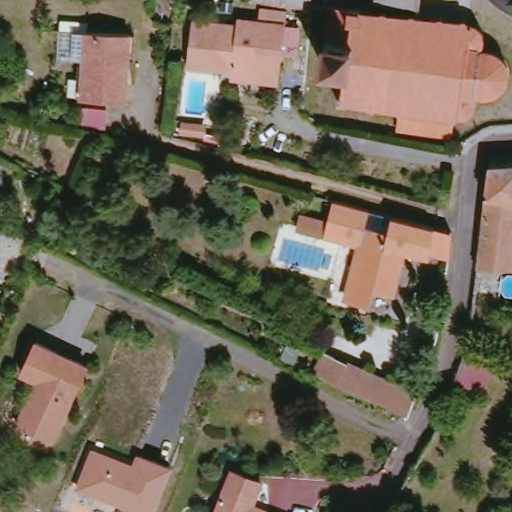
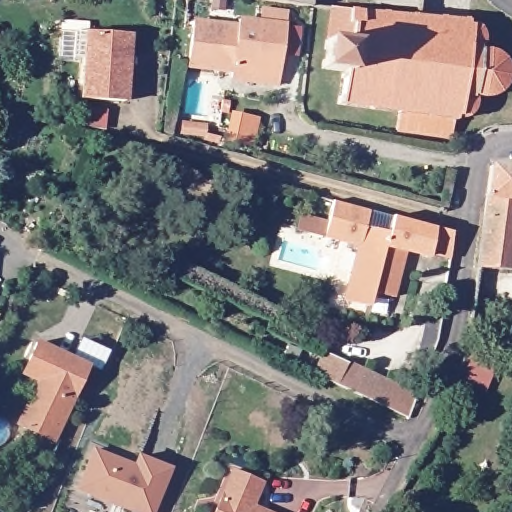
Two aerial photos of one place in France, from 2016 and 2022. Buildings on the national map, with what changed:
unchanged [(312,5),(295,3),(269,0),(312,0),(312,5)]
unchanged [(422,5),(375,4),(374,0),(421,0),(422,5)]
unchanged [(232,26),(233,16),(253,18),(257,5),(267,7),(267,21),(279,22),(277,46),(283,47),(281,69),(275,70),(272,87),(225,82),(226,73),(183,68),(190,18),(232,26)]
unchanged [(471,23),(471,28),(478,28),(483,31),(485,34),(485,55),(501,58),(504,60),(507,68),(510,79),(510,88),(507,94),(499,103),(492,107),(482,106),(478,114),(474,119),(468,123),(460,121),(457,138),(393,129),(395,112),(375,109),(375,113),(369,112),(370,107),(355,104),(353,110),(341,108),(342,97),(348,97),(350,72),(346,71),(347,66),(330,64),(337,11),(353,13),(354,8),(421,17),(471,23)]
unchanged [(82,98),(82,32),(122,31),(123,97),(82,98)]
unchanged [(472,267),(485,159),(492,159),(492,162),(512,161),(512,238),(508,269),(472,267)]
unchanged [(350,205),(346,221),(358,224),(353,244),(316,235),(325,199),(350,205)]
unchanged [(358,224),(346,221),(350,205),(444,231),(440,256),(423,252),(423,256),(397,251),(385,297),(367,293),(365,305),(339,297),(353,244),(358,224)]
unchanged [(480,391),(450,383),(462,343),(493,356),(480,391)]
unchanged [(10,425),(27,393),(32,389),(35,389),(37,385),(15,374),(30,344),(82,371),(45,444),(10,425)]
unchanged [(405,417),(330,384),(308,373),(320,351),(343,363),(411,391),(405,417)]
unchanged [(137,452),(172,467),(156,512),(131,512),(75,490),(90,448),(132,463),(137,452)]
unchanged [(255,506),(272,512),(213,512),(230,469),(265,481),(255,506)]

